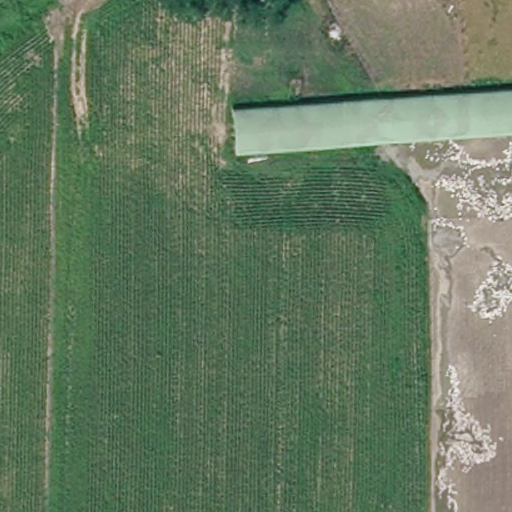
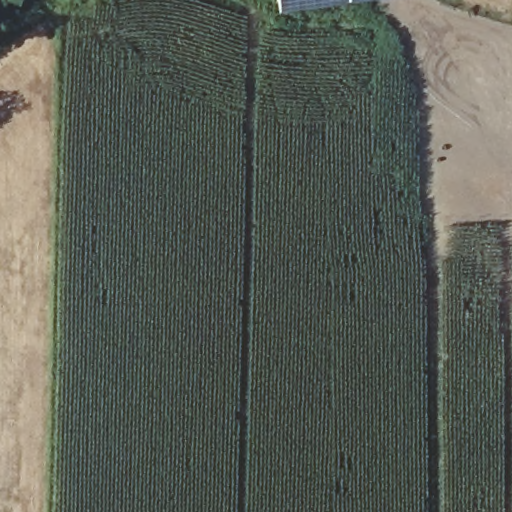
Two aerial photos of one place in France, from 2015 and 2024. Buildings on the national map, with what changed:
new [(278,0),(352,0),(279,11),(278,0)]
demolished [(512,134),(236,153),(232,107),(512,88),(512,134)]

